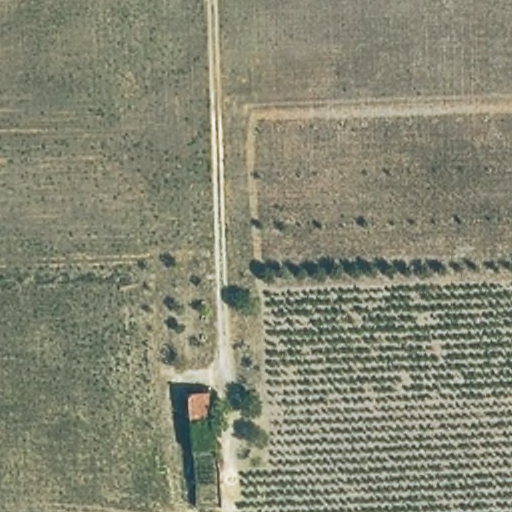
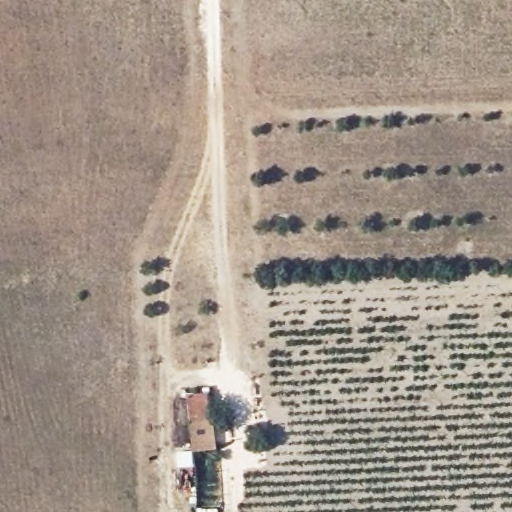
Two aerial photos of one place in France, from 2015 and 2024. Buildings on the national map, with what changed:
unchanged [(208,388),(208,415),(187,415),(186,390),(208,388)]

